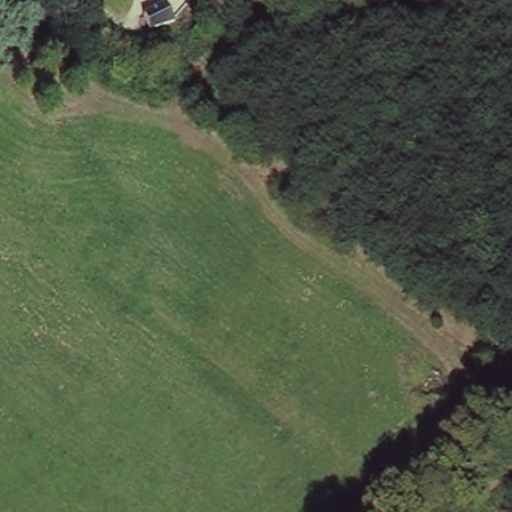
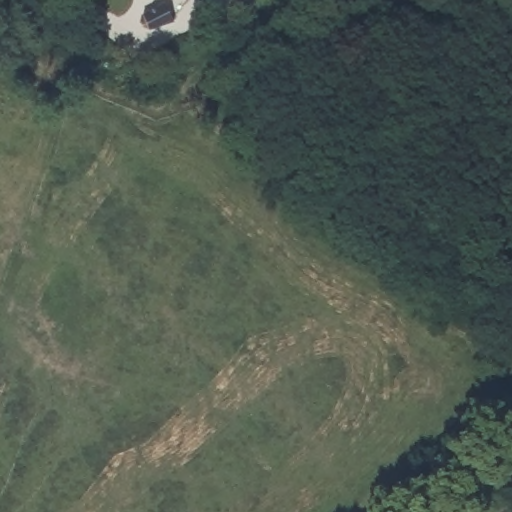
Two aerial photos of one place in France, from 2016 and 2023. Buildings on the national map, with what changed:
unchanged [(170,0),(175,17),(152,25),(145,5),(162,0),(170,0)]

